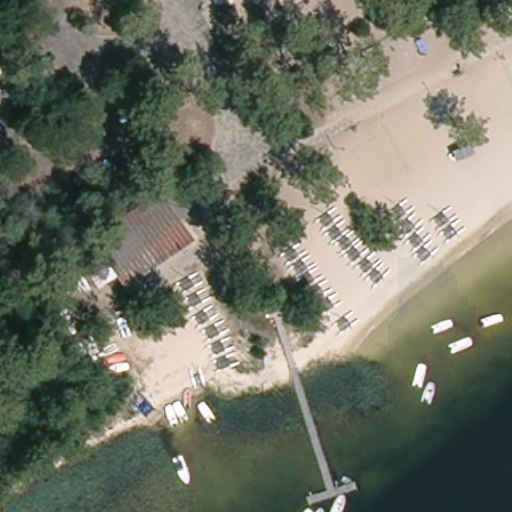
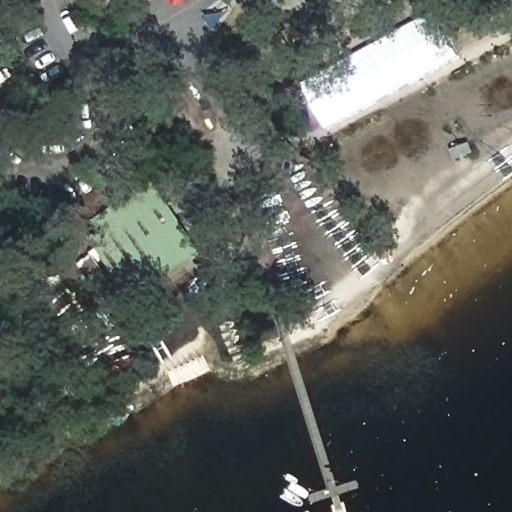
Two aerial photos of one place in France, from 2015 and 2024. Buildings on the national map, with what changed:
new [(331,130),(305,83),(436,11),(464,56),(331,130)]
unchanged [(116,274),(91,242),(154,191),(167,207),(184,232),(187,236),(175,246),(126,284),(116,274)]

